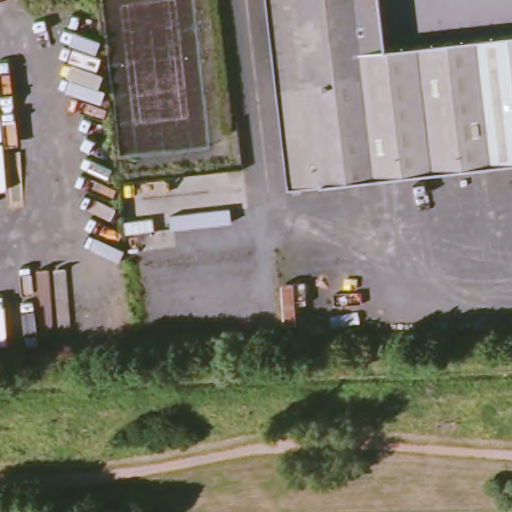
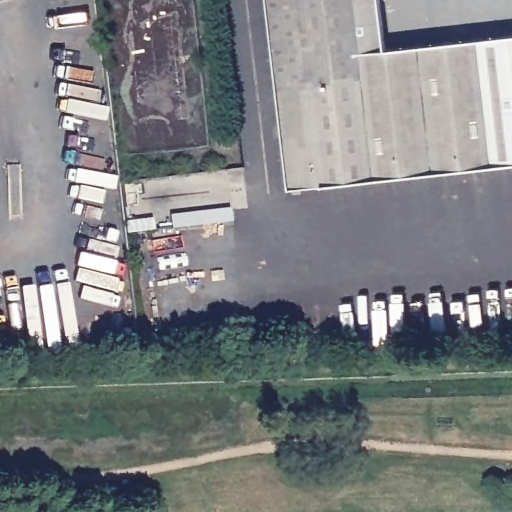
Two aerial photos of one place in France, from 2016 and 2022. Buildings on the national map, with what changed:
unchanged [(393,47),(403,47),(512,35),(512,164),(418,174),(408,175),(286,189),(265,0),(377,0),(383,49),(393,47)]

